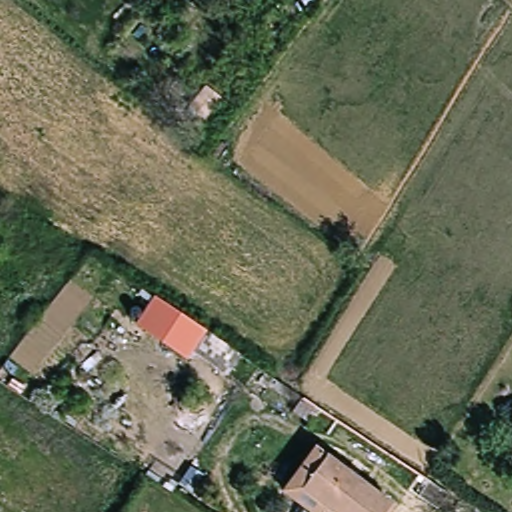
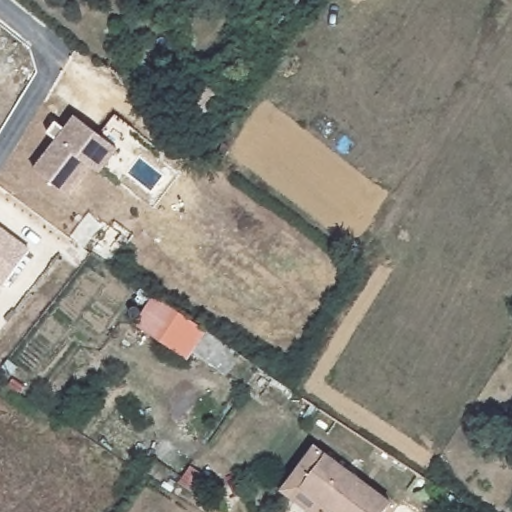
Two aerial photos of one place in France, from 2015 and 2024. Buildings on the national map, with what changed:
new [(64,130),(75,116),(97,134),(115,115),(134,129),(118,151),(100,174),(91,168),(69,197),(34,169),(56,140),(48,134),(56,123),(64,130)]
new [(30,250),(2,288),(0,286),(0,227),(30,250)]
unchanged [(150,303),(199,335),(183,359),(135,327),(150,303)]
unchanged [(384,503),(377,512),(330,512),(327,510),(325,512),(306,512),(277,494),(294,469),(307,478),(321,458),(384,503)]

